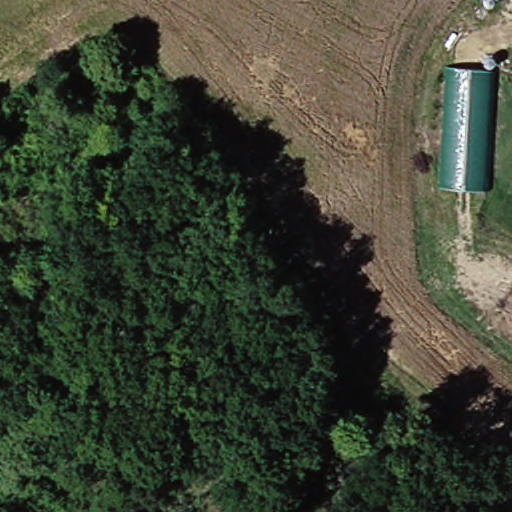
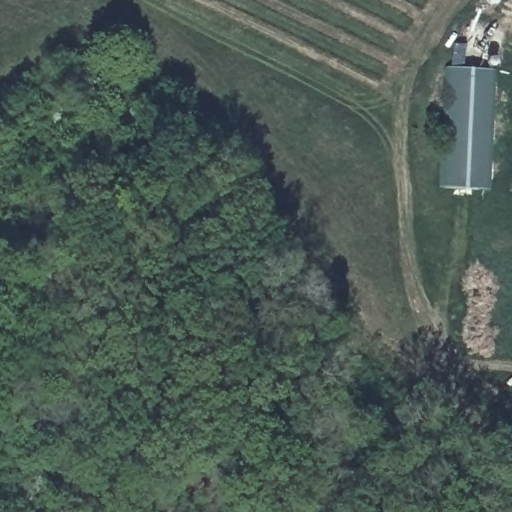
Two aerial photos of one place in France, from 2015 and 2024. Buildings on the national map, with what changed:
unchanged [(497,65),(495,188),(447,189),(448,67),(497,65)]

